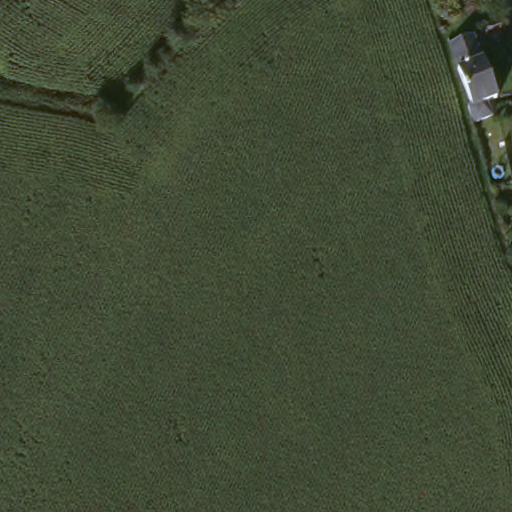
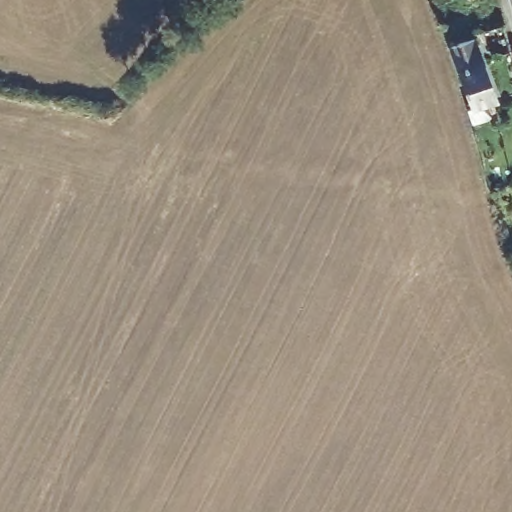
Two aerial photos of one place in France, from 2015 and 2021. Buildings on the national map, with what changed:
unchanged [(479,37),(499,99),(488,103),(493,119),(478,124),(453,46),(479,37)]
unchanged [(512,46),(512,63),(501,66),(496,45),(511,40),(512,46)]

